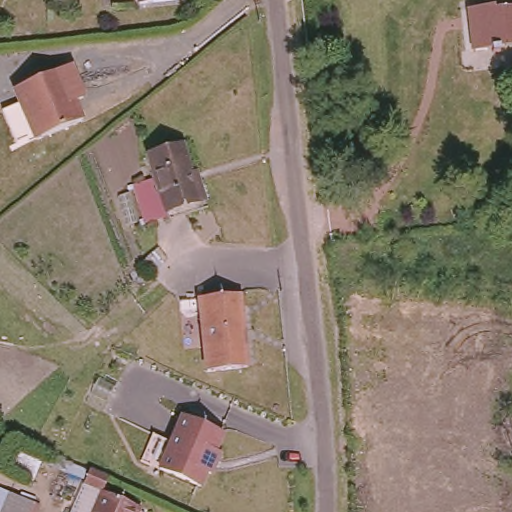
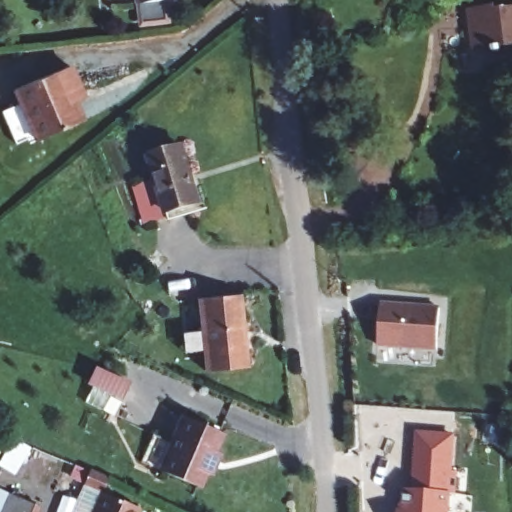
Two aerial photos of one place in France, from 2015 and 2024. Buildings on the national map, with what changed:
unchanged [(135,2),(135,0),(157,0),(135,2)]
unchanged [(495,5),(496,8),(512,6),(512,46),(472,51),(467,10),(495,5)]
unchanged [(46,138),(43,132),(26,140),(12,109),(30,100),(24,86),(77,61),(87,83),(79,86),(92,117),(46,138)]
unchanged [(195,204),(165,210),(152,152),(182,146),(195,204)]
unchanged [(247,366),(207,372),(196,298),(236,293),(247,366)]
new [(440,306),(437,350),(377,348),(380,306),(440,306)]
unchanged [(229,438),(220,456),(225,458),(215,481),(210,479),(203,493),(162,475),(187,420),(229,438)]
new [(415,430),(455,433),(452,470),(457,470),(455,493),(450,492),(449,512),(397,512),(399,489),(410,490),(415,430)]
unchanged [(102,490),(136,505),(133,512),(72,512),(89,468),(107,476),(102,490)]
unchanged [(0,512),(0,501),(3,493),(33,506),(31,512),(0,512)]

